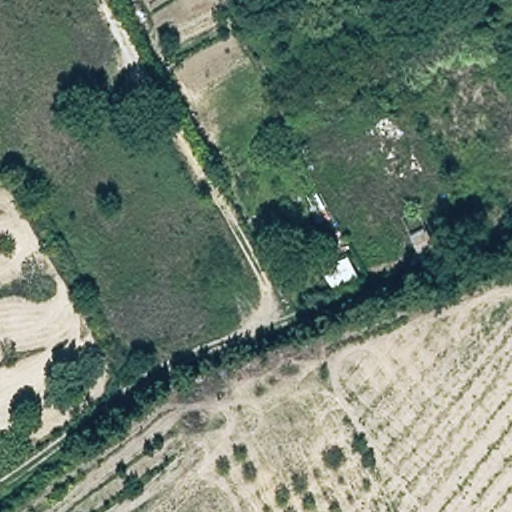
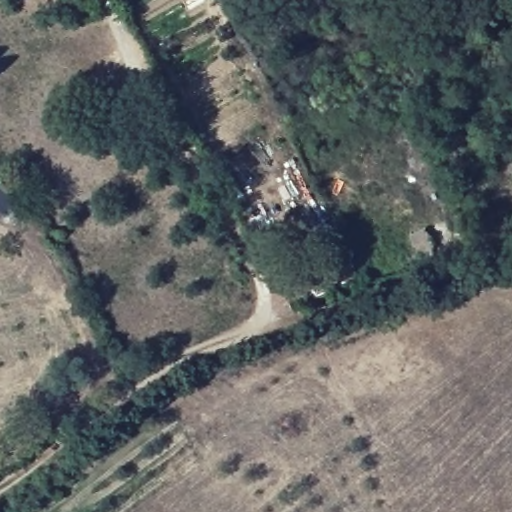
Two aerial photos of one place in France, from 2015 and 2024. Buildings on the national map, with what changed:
unchanged [(406,236),(427,227),(439,255),(418,260),(406,236)]

